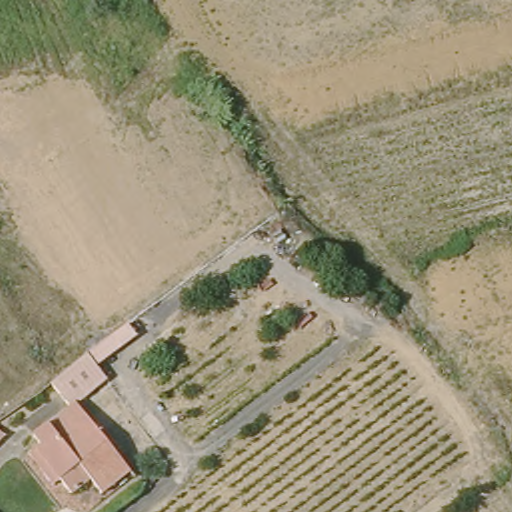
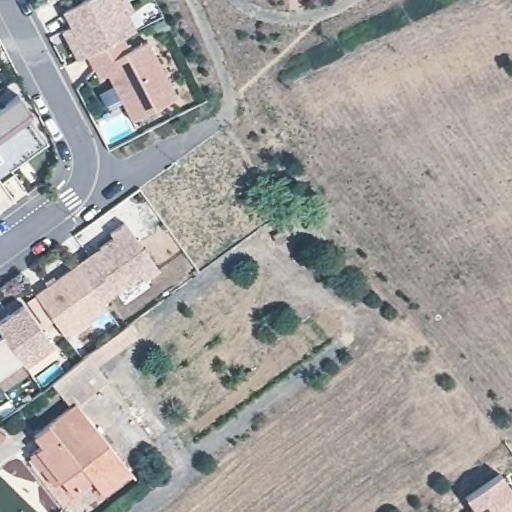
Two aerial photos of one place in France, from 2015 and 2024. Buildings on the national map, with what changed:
new [(60,9),(77,0),(123,0),(128,10),(121,13),(130,29),(118,35),(82,53),(74,58),(64,38),(59,28),(67,24),(60,9)]
new [(125,49),(143,39),(173,96),(129,119),(104,73),(95,78),(90,68),(82,53),(118,35),(125,49)]
new [(7,168),(9,171),(0,177),(0,104),(15,94),(26,109),(23,112),(41,137),(44,141),(7,168)]
new [(96,245),(110,235),(107,231),(121,221),(156,267),(141,278),(137,273),(99,301),(72,263),(86,252),(96,245)]
new [(72,263),(104,306),(64,336),(32,292),(72,263)]
new [(20,301),(23,305),(50,342),(22,362),(18,357),(0,333),(0,315),(6,311),(20,301)]
new [(18,357),(0,370),(0,333),(18,357)]
unchanged [(55,381),(93,352),(114,385),(86,401),(80,393),(70,401),(55,381)]
unchanged [(45,447),(40,440),(50,432),(43,422),(70,401),(80,393),(86,401),(132,464),(106,485),(94,469),(74,485),(45,447)]
unchanged [(11,451),(0,457),(0,427),(5,424),(11,451)]
unchanged [(94,469),(106,485),(132,464),(139,476),(93,512),(86,512),(77,503),(72,507),(36,456),(45,447),(74,485),(94,469)]
new [(512,488),(512,512),(474,512),(465,498),(501,473),(512,488)]

